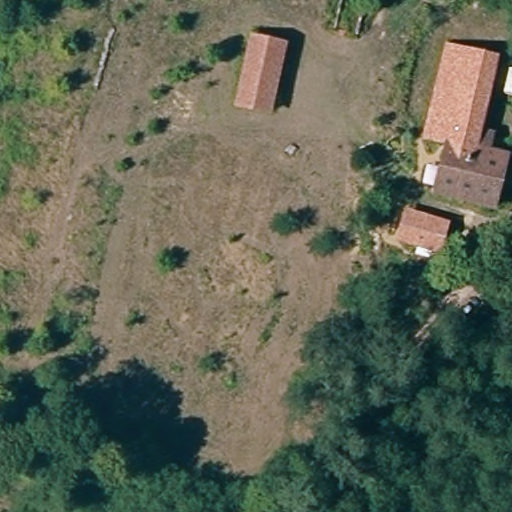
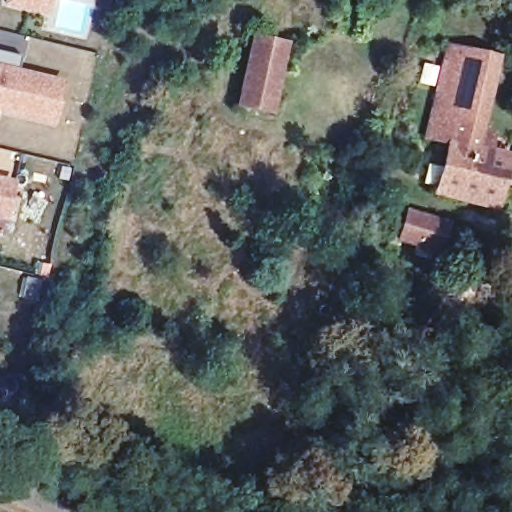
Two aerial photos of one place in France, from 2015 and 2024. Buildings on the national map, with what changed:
new [(31,4),(15,0),(32,0),(31,4)]
unchanged [(272,108),(239,101),(254,37),(287,45),(272,108)]
unchanged [(493,134),(489,150),(507,155),(494,206),(438,191),(449,141),(428,136),(450,46),(496,58),(490,84),(483,114),(479,129),(493,134)]
new [(18,68),(65,79),(52,126),(0,113),(0,52),(21,56),(18,68)]
new [(8,221),(0,219),(0,178),(16,181),(8,221)]
unchanged [(444,224),(440,241),(396,231),(400,214),(444,224)]

